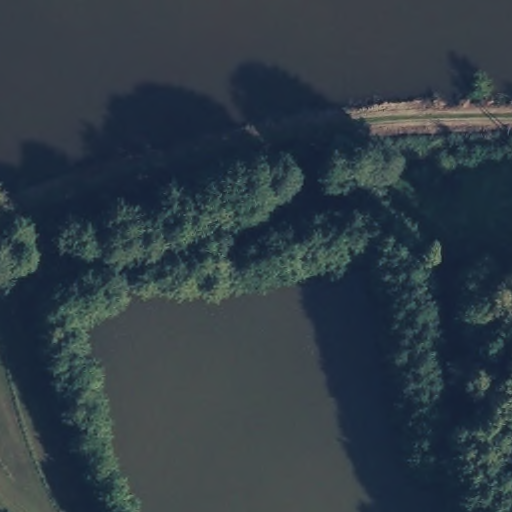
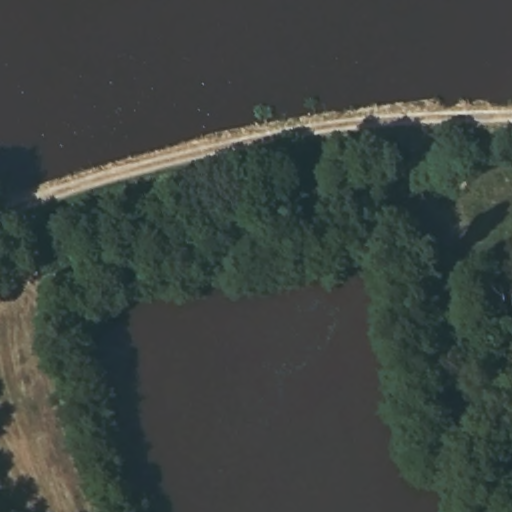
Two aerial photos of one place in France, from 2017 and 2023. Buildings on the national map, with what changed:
[]

